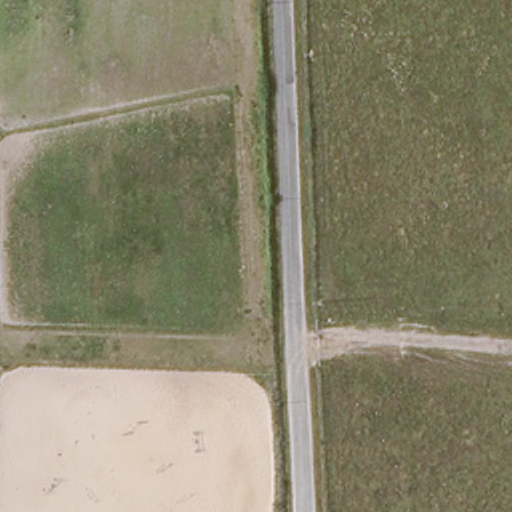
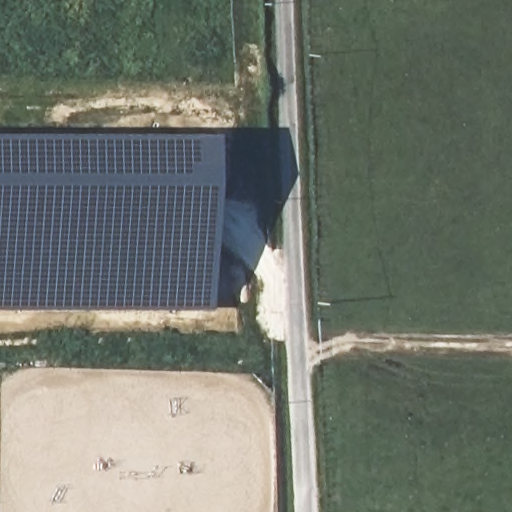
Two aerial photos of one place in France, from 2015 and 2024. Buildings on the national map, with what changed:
new [(210,309),(0,309),(0,133),(212,132),(210,309)]

